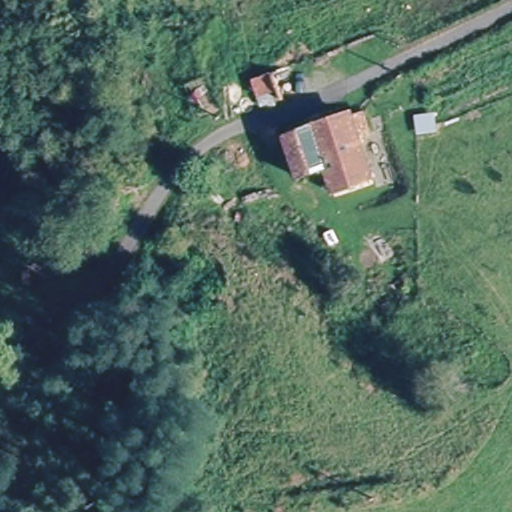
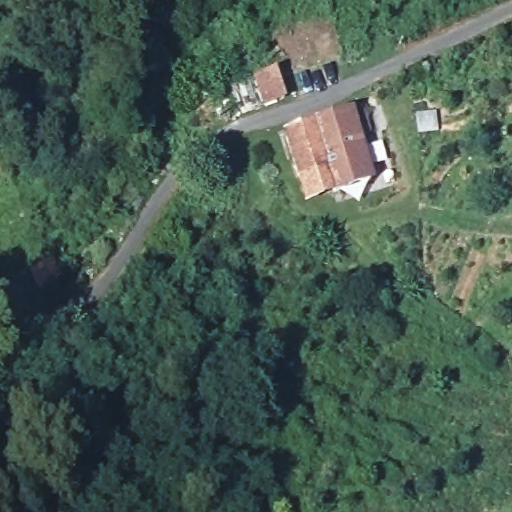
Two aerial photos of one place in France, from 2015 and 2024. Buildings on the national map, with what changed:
unchanged [(343,185),(337,170),(322,176),(305,133),(360,111),(383,169),(343,185)]
unchanged [(305,133),(322,176),(301,184),(285,140),(305,133)]

